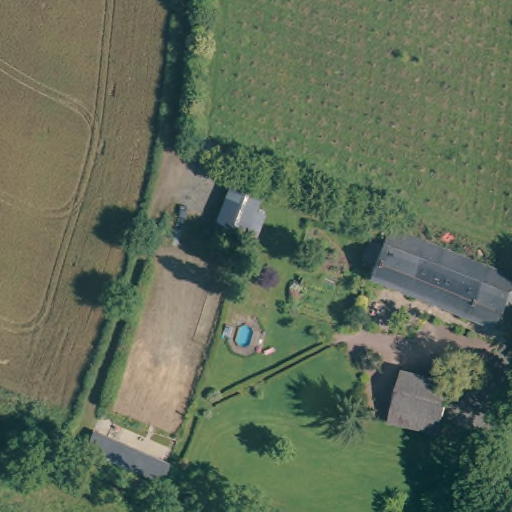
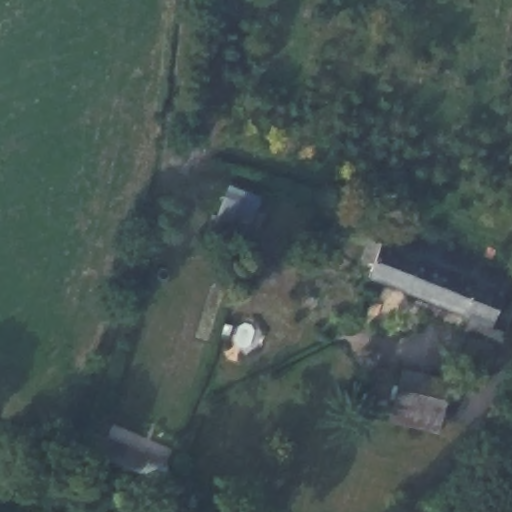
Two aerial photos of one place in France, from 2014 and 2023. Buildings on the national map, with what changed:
unchanged [(242,258),(234,254),(205,240),(224,199),(252,212),(247,225),(255,229),(242,258)]
unchanged [(493,329),(493,330),(371,280),(375,268),(365,264),(372,244),(382,248),(385,241),(389,230),(512,280),(512,318),(506,334),(493,329)]
unchanged [(383,401),(387,384),(437,396),(425,447),(388,438),(376,434),(383,401)]
unchanged [(74,438),(147,474),(138,491),(65,455),(74,438)]

